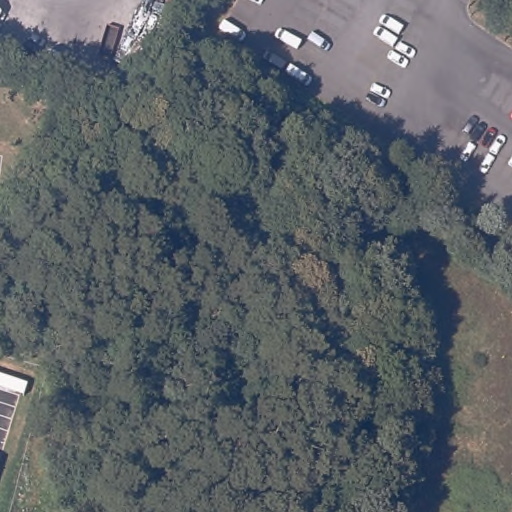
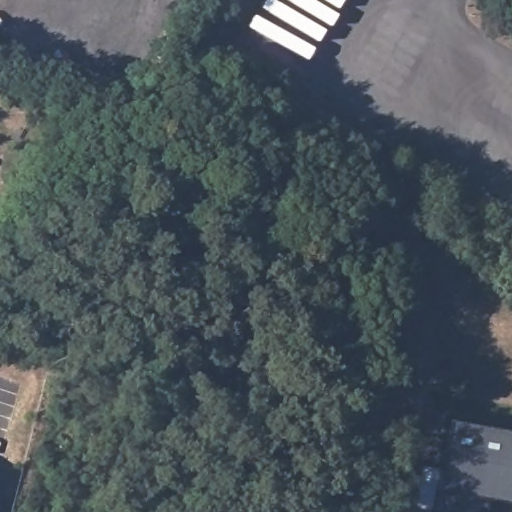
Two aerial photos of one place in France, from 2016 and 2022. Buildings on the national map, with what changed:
new [(451,418),(512,429),(512,501),(486,497),(484,512),(432,512),(437,487),(451,418)]

